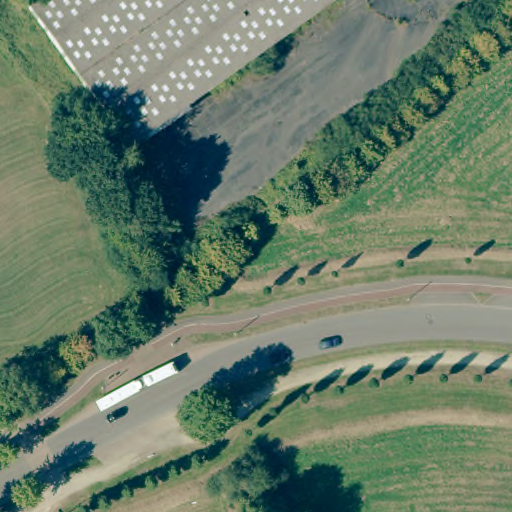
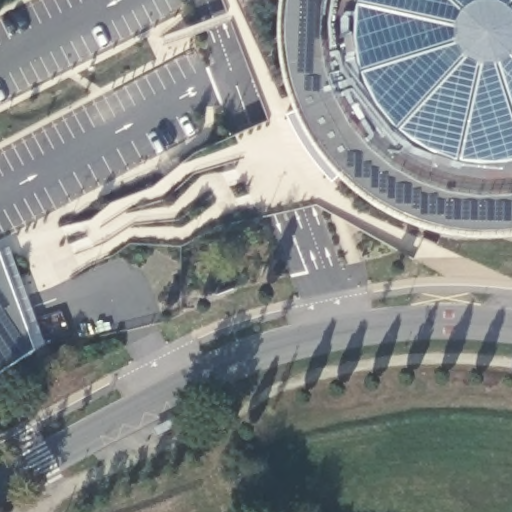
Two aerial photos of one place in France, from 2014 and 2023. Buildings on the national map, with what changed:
demolished [(24,3),(28,0),(331,0),(122,145),(24,3)]
new [(459,230),(422,221),(388,204),(359,184),(342,169),(333,179),(319,164),(302,137),(288,111),(300,105),(295,98),(286,68),(279,41),(280,9),(281,0),(512,0),(512,227),(496,230),(459,230)]
new [(35,351),(0,375),(0,256),(35,351)]

